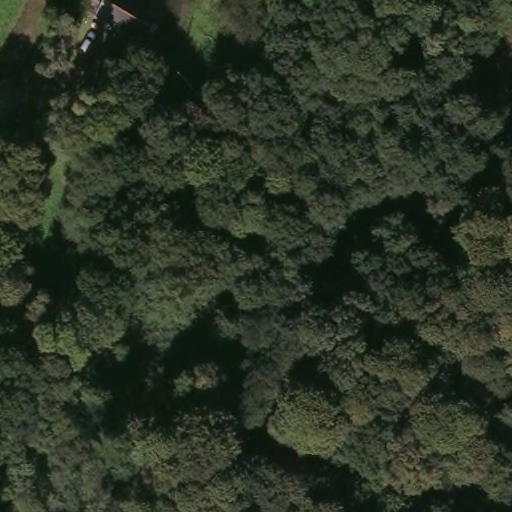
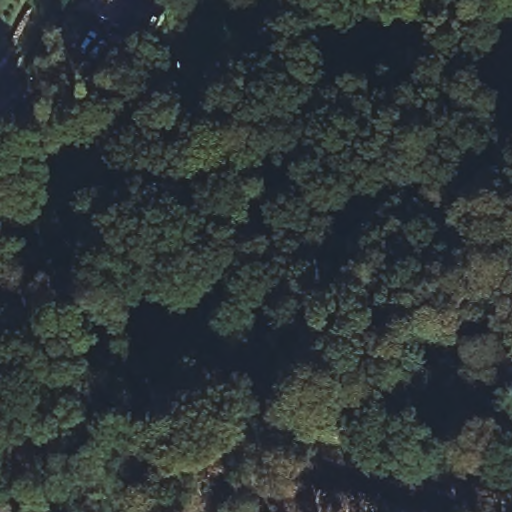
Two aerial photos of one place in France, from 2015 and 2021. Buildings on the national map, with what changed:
unchanged [(147,48),(92,16),(102,0),(176,0),(177,0),(147,48)]

